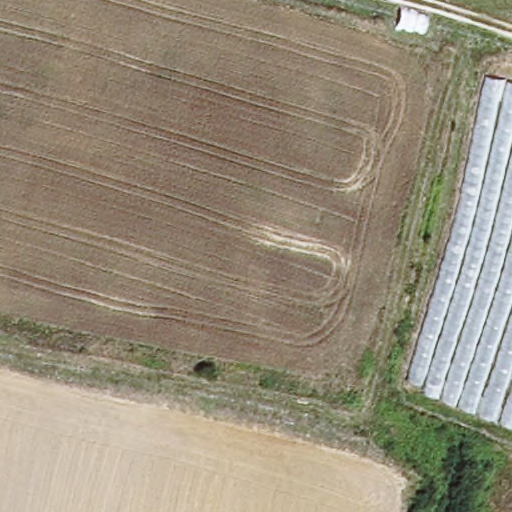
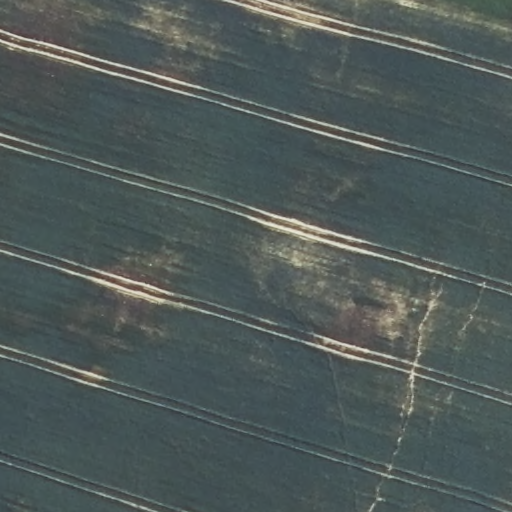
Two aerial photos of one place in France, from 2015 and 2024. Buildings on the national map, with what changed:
demolished [(512,424),(492,420),(407,378),(486,74),(512,81),(512,424)]

